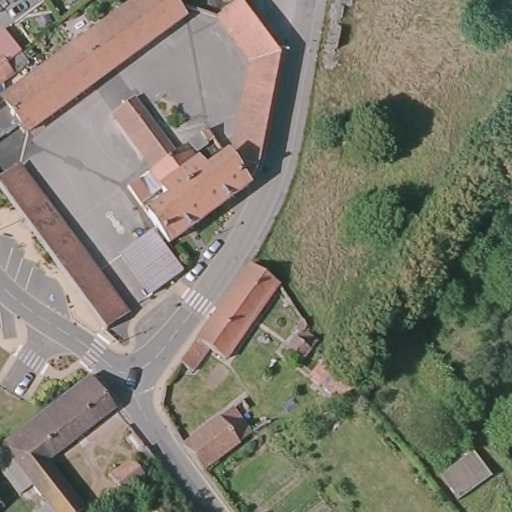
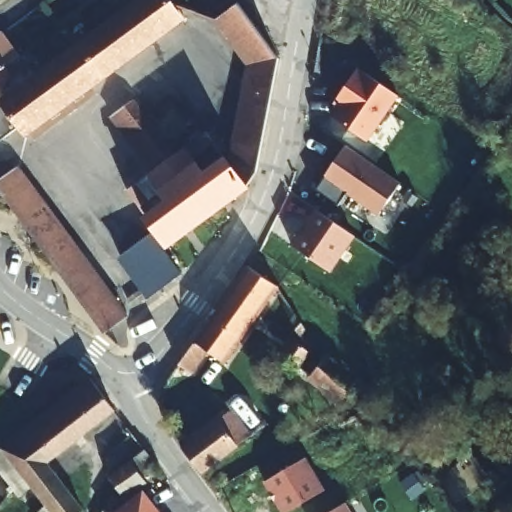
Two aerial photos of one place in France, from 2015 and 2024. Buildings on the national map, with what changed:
unchanged [(137,0),(170,0),(183,17),(27,134),(2,100),(137,0)]
demolished [(243,0),(250,0),(260,14),(249,22),(235,5),(243,0)]
unchanged [(212,22),(235,5),(249,22),(278,60),(272,95),(256,176),(247,189),(229,166),(248,67),(212,22)]
unchanged [(13,54),(0,64),(0,48),(6,44),(13,54)]
unchanged [(0,82),(0,65),(8,76),(0,82)]
new [(371,141),(336,119),(342,109),(337,105),(360,69),(401,95),(371,141)]
unchanged [(21,125),(0,140),(0,101),(2,100),(21,125)]
unchanged [(161,165),(155,170),(112,114),(126,103),(170,159),(161,165)]
unchanged [(201,147),(195,140),(202,135),(208,142),(201,147)]
new [(401,183),(378,215),(347,194),(337,204),(316,190),(347,146),(401,183)]
unchanged [(229,166),(247,189),(247,190),(206,220),(161,165),(170,159),(180,150),(202,177),(224,160),(229,166)]
unchanged [(0,195),(0,173),(12,165),(100,281),(77,298),(0,195)]
unchanged [(165,204),(144,177),(155,170),(161,165),(206,220),(165,250),(142,221),(165,204)]
new [(295,246),(318,210),(357,235),(334,271),(295,246)]
unchanged [(146,237),(177,277),(147,299),(116,259),(146,237)]
unchanged [(260,275),(277,287),(221,361),(205,350),(187,372),(173,362),(245,266),(260,275)]
unchanged [(77,298),(100,281),(124,315),(101,331),(77,298)]
unchanged [(293,369),(277,357),(299,334),(309,341),(302,350),(307,355),(293,369)]
unchanged [(358,391),(336,399),(306,378),(328,356),(337,366),(358,391)]
unchanged [(47,454),(85,503),(72,512),(37,512),(0,462),(0,442),(3,440),(1,437),(91,373),(116,405),(47,454)]
unchanged [(198,472),(178,446),(232,408),(253,433),(198,472)]
unchanged [(140,470),(146,480),(124,495),(108,475),(146,449),(155,460),(140,470)]
unchanged [(472,450),(492,479),(456,502),(437,474),(472,450)]
new [(325,492),(293,512),(283,512),(266,484),(306,460),(325,492)]
new [(161,512),(115,512),(144,490),(161,512)]
new [(349,512),(334,512),(345,505),(349,512)]
new [(0,509),(0,507),(1,508),(0,509)]

